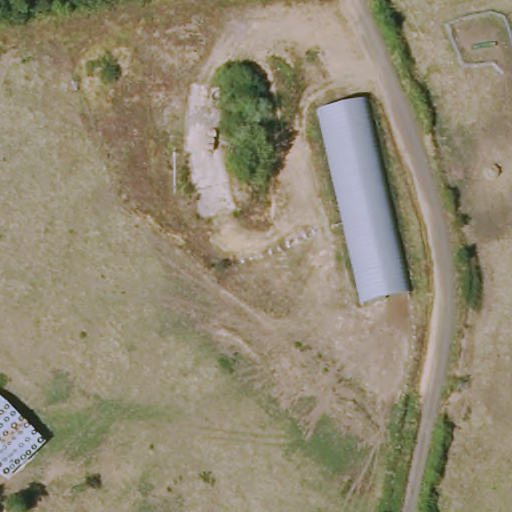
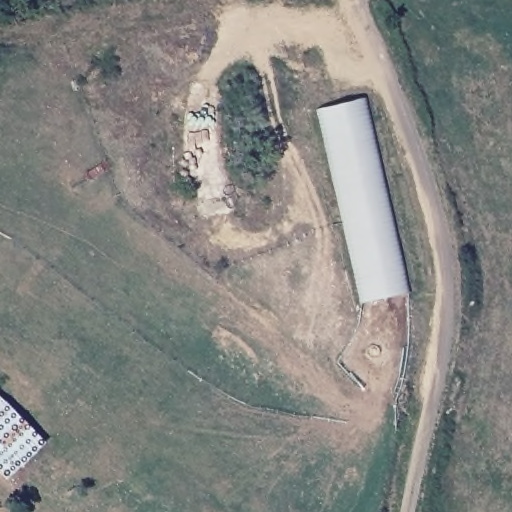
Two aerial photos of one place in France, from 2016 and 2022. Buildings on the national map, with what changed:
unchanged [(362,99),(407,293),(362,303),(320,109),(362,99)]
unchanged [(18,417),(45,445),(0,483),(0,435),(18,417)]

